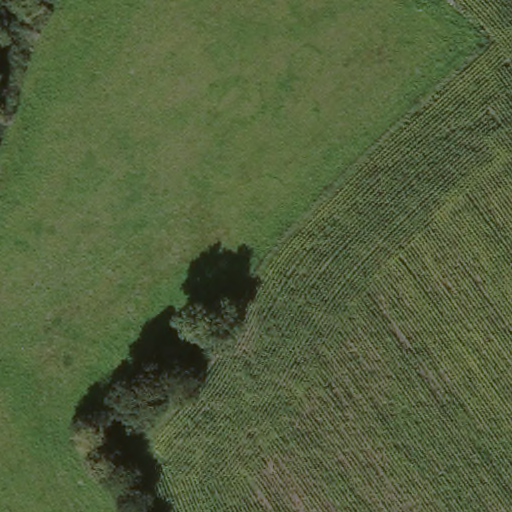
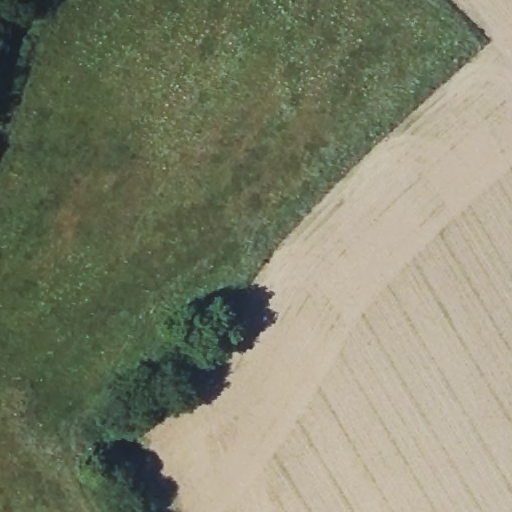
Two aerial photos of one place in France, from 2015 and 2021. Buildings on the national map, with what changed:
[]

